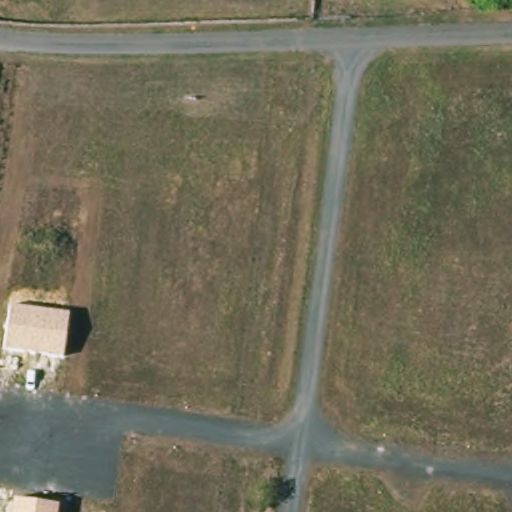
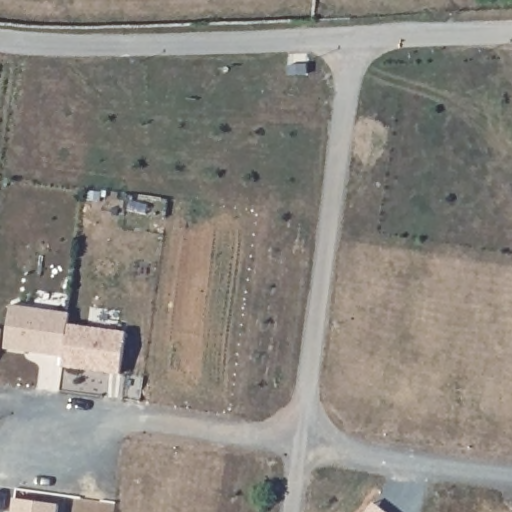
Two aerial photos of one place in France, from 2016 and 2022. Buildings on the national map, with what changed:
unchanged [(13,307),(70,314),(64,357),(6,350),(13,307)]
new [(62,366),(64,357),(69,323),(126,331),(120,374),(62,366)]
unchanged [(59,505),(57,512),(12,512),(14,499),(59,505)]

